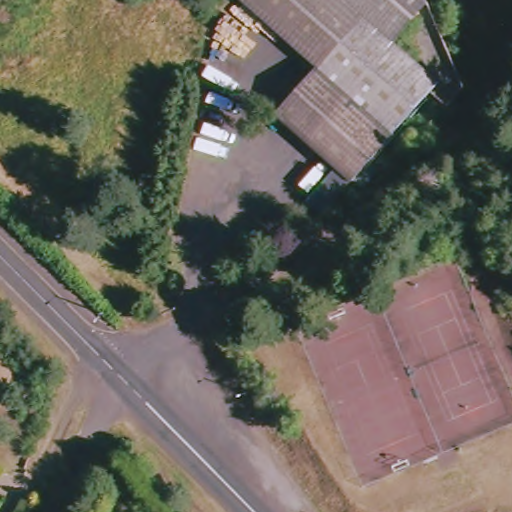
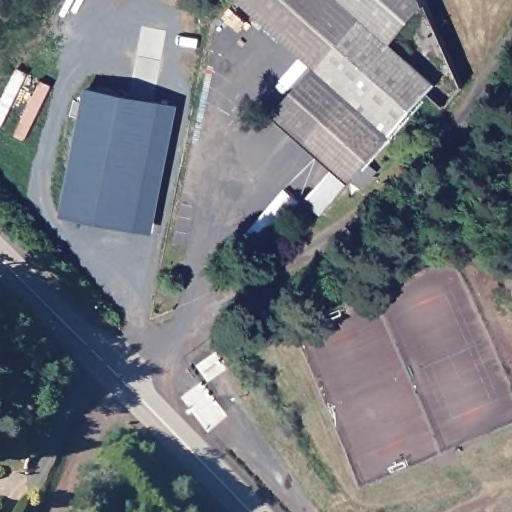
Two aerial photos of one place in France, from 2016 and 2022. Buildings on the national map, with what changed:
unchanged [(322,70),(245,0),(349,0),(368,17),(324,68),(322,70)]
unchanged [(445,85),(368,17),(349,0),(429,0),(450,61),(445,85)]
unchanged [(445,85),(359,183),(311,141),(352,95),(324,68),(368,17),(445,85)]
unchanged [(282,116),(322,70),(324,68),(352,95),(311,141),(282,116)]
new [(88,88),(179,106),(154,234),(62,216),(88,88)]

